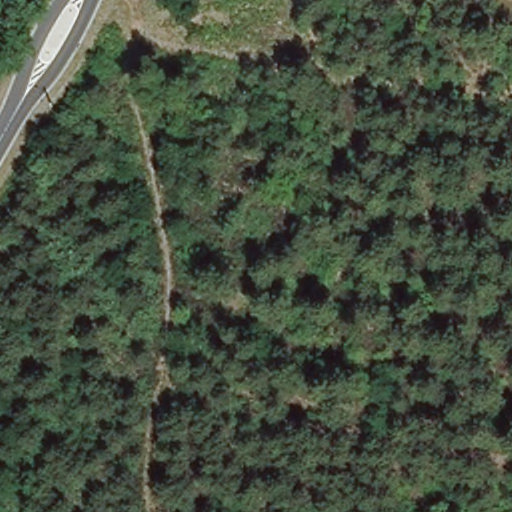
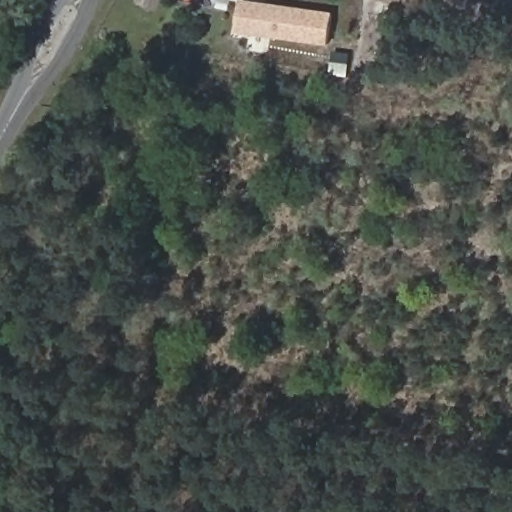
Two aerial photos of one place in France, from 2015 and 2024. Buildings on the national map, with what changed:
new [(336,13),(331,45),(238,34),(243,0),(336,13)]

